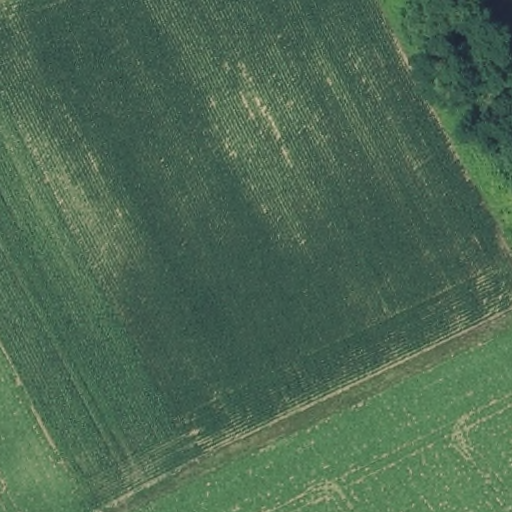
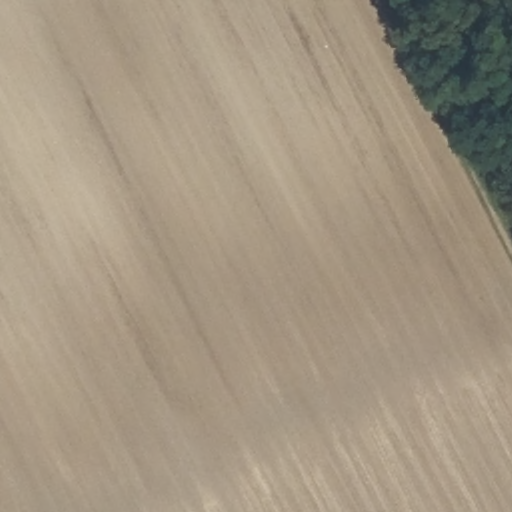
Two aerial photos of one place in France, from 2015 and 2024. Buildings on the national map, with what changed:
unchanged [(451,51),(439,25),(457,15),(471,42),(451,51)]

